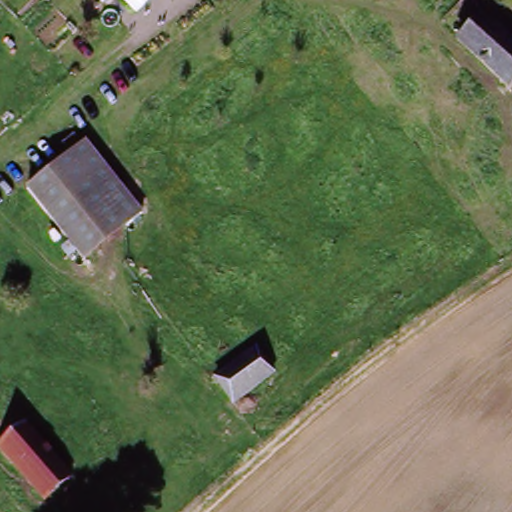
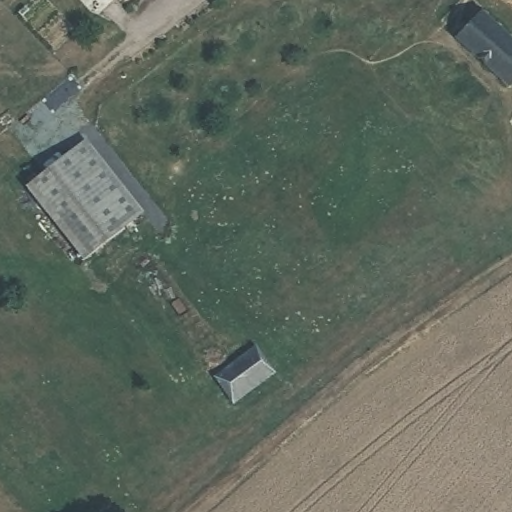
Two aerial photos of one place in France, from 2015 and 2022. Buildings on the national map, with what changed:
unchanged [(110,8),(102,0),(118,0),(110,8)]
unchanged [(447,29),(475,2),(512,37),(512,74),(503,82),(447,29)]
unchanged [(25,190),(86,139),(145,215),(83,262),(25,190)]
unchanged [(272,376),(233,411),(210,386),(248,350),(272,376)]
demolished [(0,449),(0,443),(20,426),(70,480),(49,501),(0,449)]

